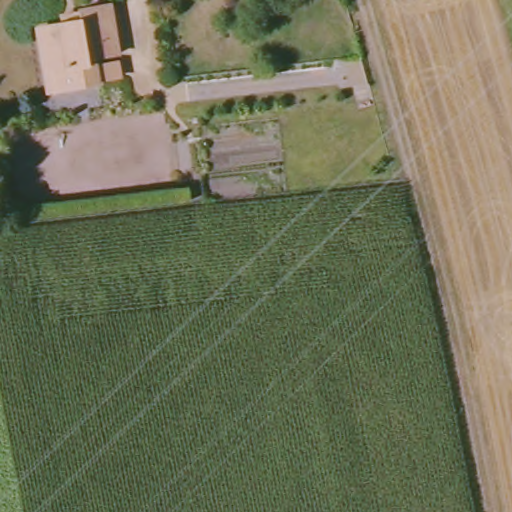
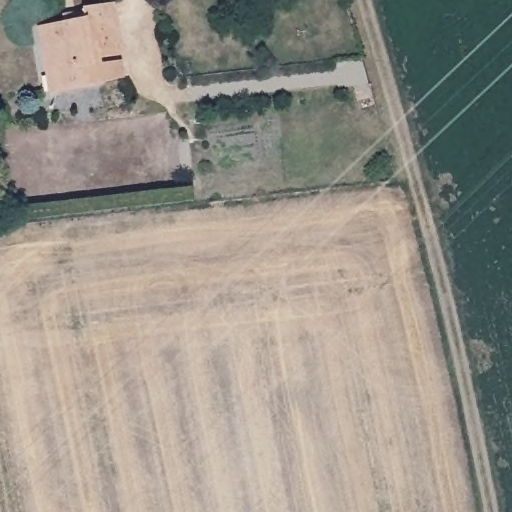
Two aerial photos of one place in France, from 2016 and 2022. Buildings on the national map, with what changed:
unchanged [(110,4),(118,55),(95,59),(98,84),(57,89),(55,76),(45,75),(38,27),(80,20),(78,9),(110,4)]

